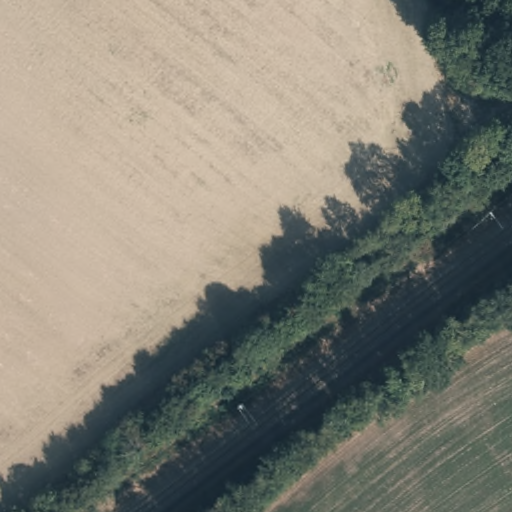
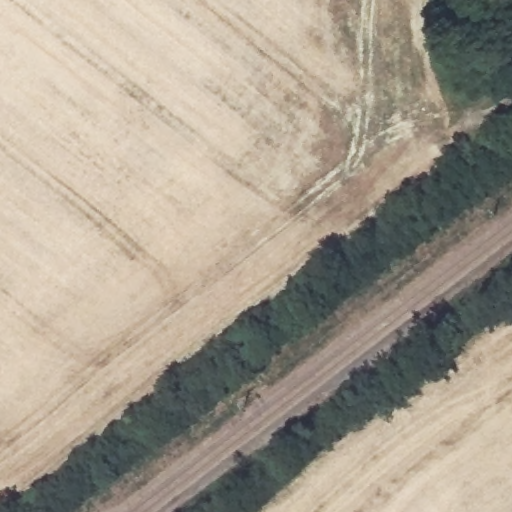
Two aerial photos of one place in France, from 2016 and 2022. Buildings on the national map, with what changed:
unchanged [(504,138),(512,129),(512,146),(504,138)]

